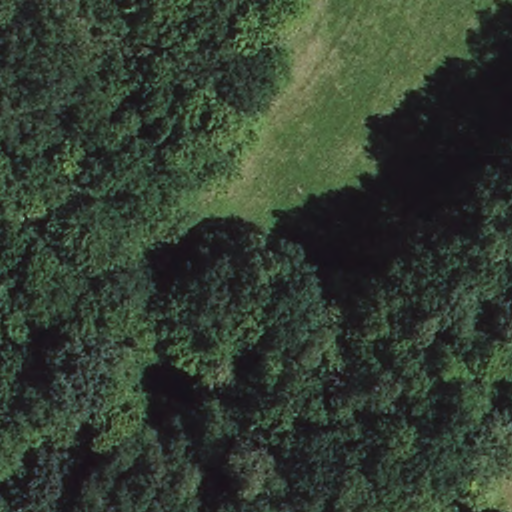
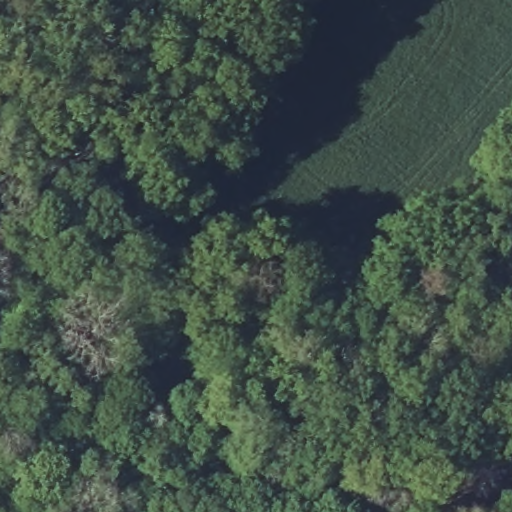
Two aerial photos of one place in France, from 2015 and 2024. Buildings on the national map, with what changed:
[]

